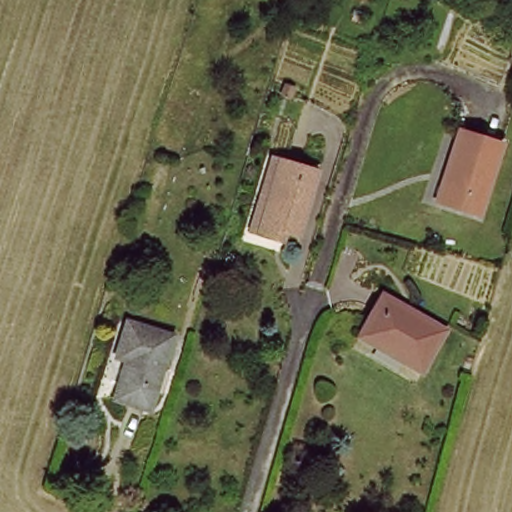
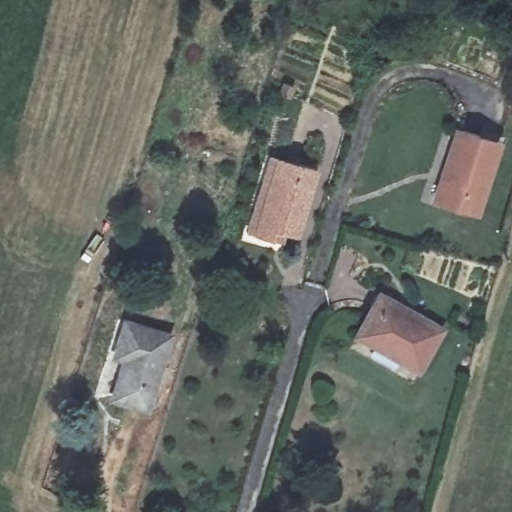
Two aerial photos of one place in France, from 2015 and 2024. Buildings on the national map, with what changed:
unchanged [(478,215),(442,200),(453,170),(442,166),(457,126),(503,146),(478,215)]
unchanged [(302,238),(285,233),(281,242),(251,232),(280,147),(324,165),(302,238)]
unchanged [(417,370),(394,358),(398,347),(358,326),(379,290),(441,327),(417,370)]
unchanged [(149,406),(115,397),(126,355),(115,349),(127,316),(173,330),(149,406)]

